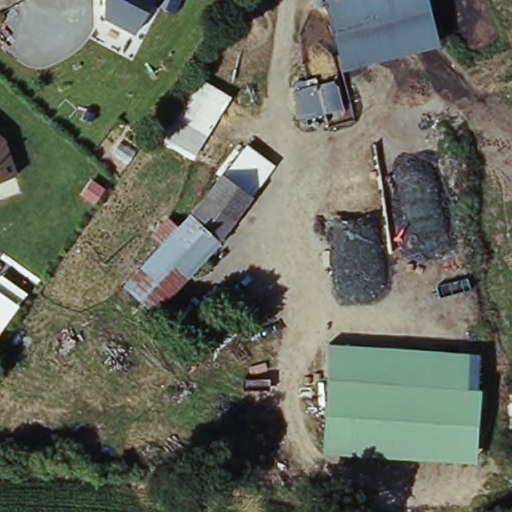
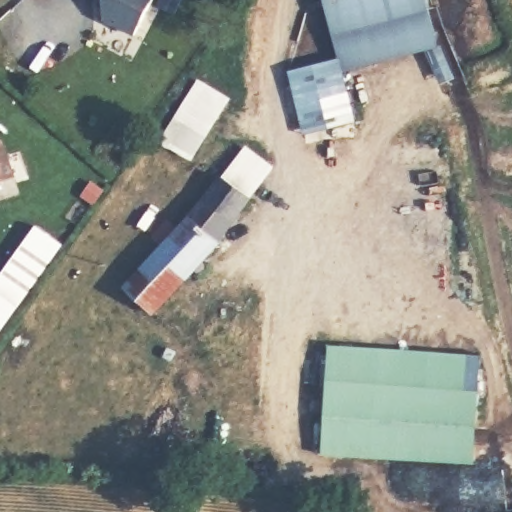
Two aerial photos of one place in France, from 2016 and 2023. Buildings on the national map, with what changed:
unchanged [(102,0),(180,0),(174,14),(150,3),(133,37),(101,19),(102,0)]
unchanged [(325,0),(429,0),(441,47),(344,72),(325,0)]
new [(344,72),(358,122),(304,137),(289,72),(340,58),(344,72)]
unchanged [(154,138),(194,77),(229,97),(192,160),(154,138)]
demolished [(314,84),(320,114),(302,118),(296,88),(314,84)]
unchanged [(15,176),(0,182),(0,136),(4,139),(15,176)]
unchanged [(227,177),(243,150),(269,169),(248,197),(227,177)]
unchanged [(254,202),(223,246),(159,316),(131,289),(167,247),(160,237),(175,222),(184,229),(227,177),(254,202)]
new [(63,245),(0,334),(0,275),(36,225),(63,245)]
unchanged [(479,353),(479,462),(327,453),(333,346),(479,353)]
unchanged [(441,500),(417,512),(407,492),(432,481),(441,500)]

